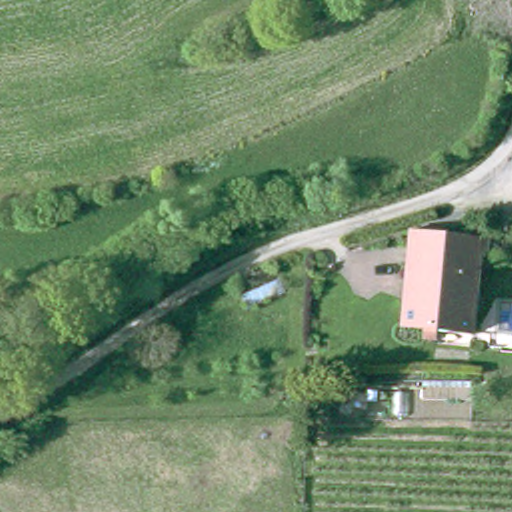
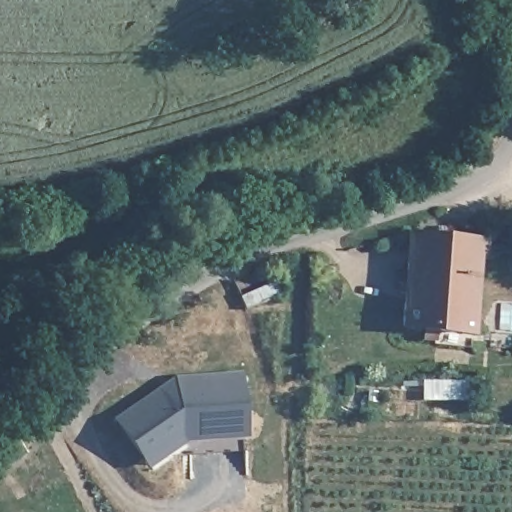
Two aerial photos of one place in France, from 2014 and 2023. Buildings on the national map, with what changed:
unchanged [(484,241),(473,338),(440,335),(439,344),(427,343),(428,333),(406,331),(417,235),(484,241)]
new [(176,375),(244,371),(247,438),(187,442),(148,470),(113,419),(176,375)]

